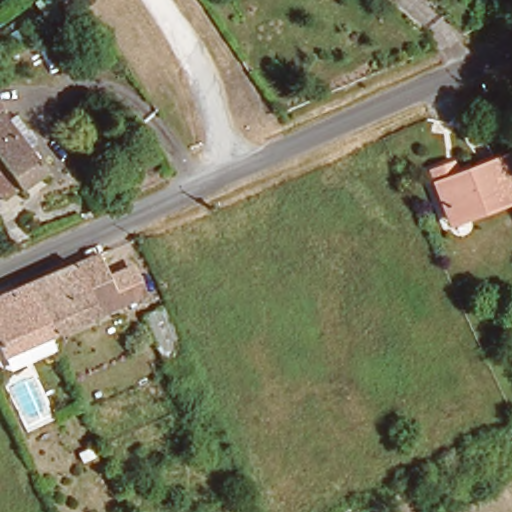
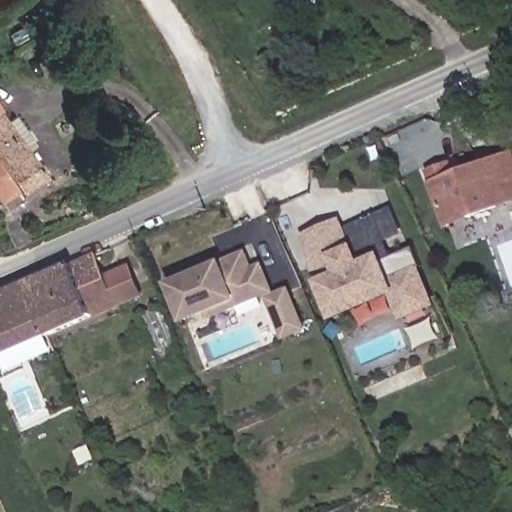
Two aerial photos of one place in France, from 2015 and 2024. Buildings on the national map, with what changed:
unchanged [(1,202),(0,200),(0,115),(40,177),(1,202)]
unchanged [(512,142),(512,198),(510,198),(495,149),(512,142)]
unchanged [(446,219),(426,156),(448,148),(455,164),(495,149),(510,198),(446,219)]
new [(403,321),(395,297),(335,321),(317,281),(310,268),(313,263),(300,235),(341,218),(356,244),(363,262),(382,254),(385,260),(414,249),(437,307),(403,321)]
new [(285,342),(267,298),(211,321),(208,315),(185,324),(168,283),(223,260),(246,251),(253,265),(263,262),(277,294),(291,288),(310,330),(285,342)]
unchanged [(5,354),(0,343),(0,299),(102,254),(112,275),(135,264),(149,293),(124,304),(92,317),(5,354)]

